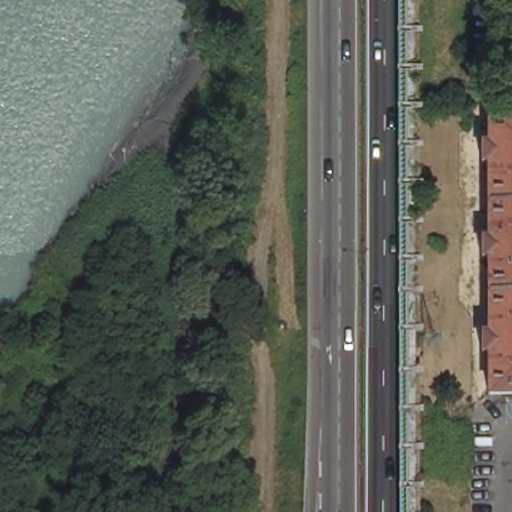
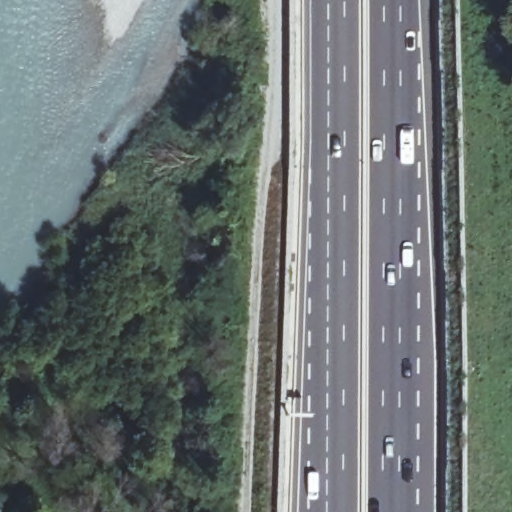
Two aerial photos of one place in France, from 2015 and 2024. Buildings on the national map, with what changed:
demolished [(491,364),(490,359),(490,351),(484,351),(484,333),(490,333),(490,319),(490,314),(490,270),(490,265),(490,256),(483,256),(483,238),(490,238),(490,229),(490,224),(490,180),(490,175),(490,161),(483,161),(483,144),(490,144),(490,129),(490,124),(490,101),(512,101),(512,393),(491,393),(491,364)]

